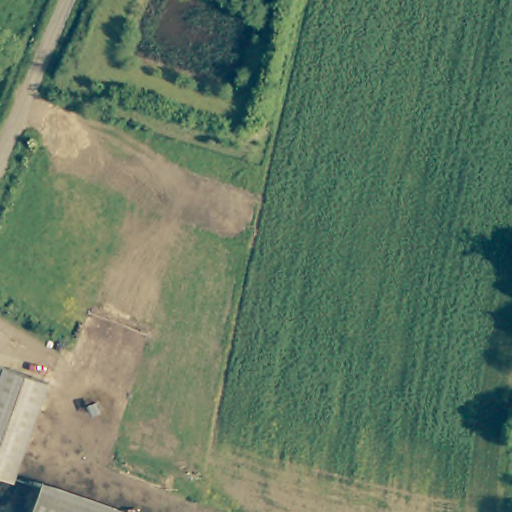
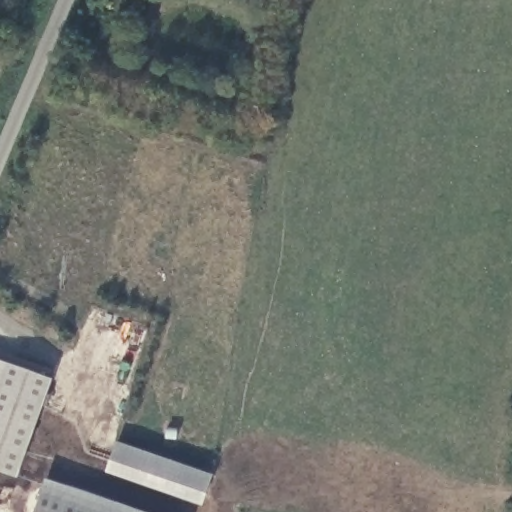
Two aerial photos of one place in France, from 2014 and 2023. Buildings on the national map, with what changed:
unchanged [(46,383),(32,417),(13,468),(10,477),(0,474),(0,366),(46,383)]
new [(119,442),(214,475),(206,507),(107,472),(119,442)]
unchanged [(100,512),(28,512),(37,488),(100,512)]

